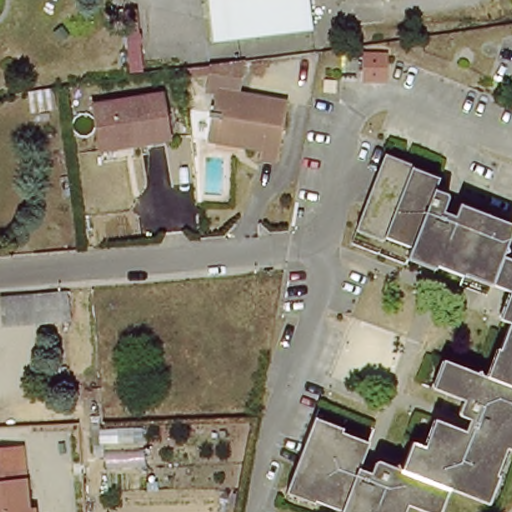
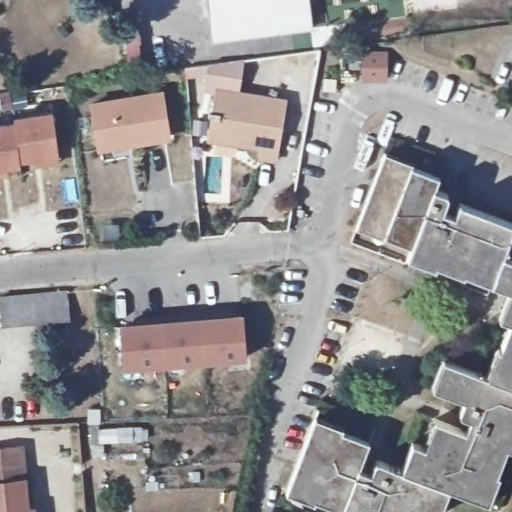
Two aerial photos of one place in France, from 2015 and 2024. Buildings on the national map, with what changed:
unchanged [(311,24),(211,36),(207,0),(308,0),(311,24)]
unchanged [(210,128),(217,86),(205,85),(206,75),(189,76),(187,60),(209,57),(250,52),(240,90),(291,101),(282,162),(266,159),(267,154),(252,151),(208,143),(210,128)]
unchanged [(326,88),(341,90),(339,106),(323,104),(326,88)]
unchanged [(94,101),(166,90),(174,140),(101,151),(94,101)]
new [(8,121),(8,114),(46,109),(51,157),(6,160),(7,173),(0,174),(0,122),(8,121)]
unchanged [(470,273),(468,278),(440,265),(438,270),(410,258),(415,248),(386,236),(385,239),(359,229),(364,217),(385,166),(391,151),(417,162),(415,167),(442,179),(437,190),(451,196),(444,213),(459,219),(466,204),(512,224),(512,248),(508,258),(512,260),(512,291),(496,284),(470,273)]
unchanged [(66,326),(7,332),(5,302),(70,296),(66,326)]
unchanged [(512,298),(512,323),(503,320),(512,298)]
new [(124,370),(121,325),(243,316),(246,360),(124,370)]
unchanged [(319,505),(291,493),(297,480),(318,429),(323,417),(351,429),(349,433),(374,443),(364,466),(376,472),(381,460),(404,470),(417,440),(429,445),(439,420),(450,425),(468,432),(473,421),(460,415),(467,399),(449,391),(437,386),(448,360),(460,365),(486,375),(497,350),(502,352),(512,330),(512,448),(500,479),(503,480),(492,505),(480,500),(453,488),(442,512),(434,512),(429,510),(412,503),(408,512),(341,512),(343,510),(321,500),(319,505)]
unchanged [(29,443),(33,477),(28,478),(30,504),(36,503),(37,512),(0,512),(0,445),(29,443)]

